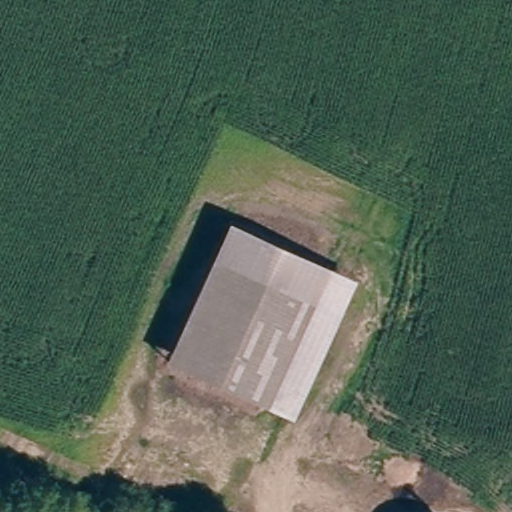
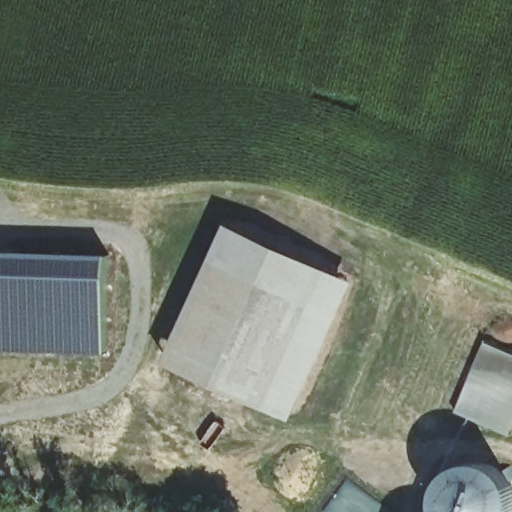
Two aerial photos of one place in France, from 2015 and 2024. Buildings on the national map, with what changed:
unchanged [(352,280),(285,426),(166,363),(228,227),(352,280)]
new [(8,249),(108,253),(105,355),(0,351),(0,249),(8,249)]
new [(512,431),(510,435),(454,412),(485,342),(512,353),(512,431)]
new [(454,466),(462,462),(474,461),(492,465),(502,471),(510,482),(512,487),(512,512),(440,512),(437,501),(440,487),(446,475),(454,466)]

